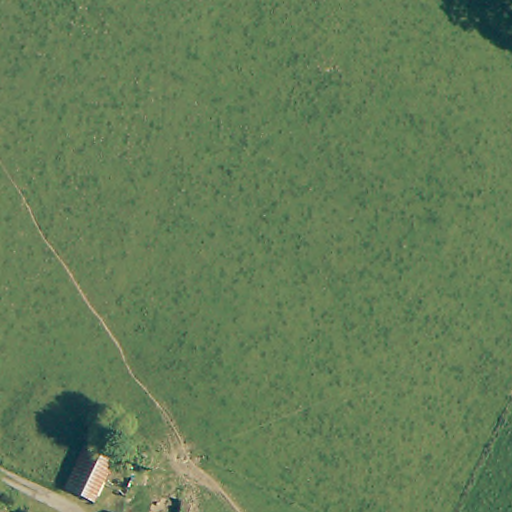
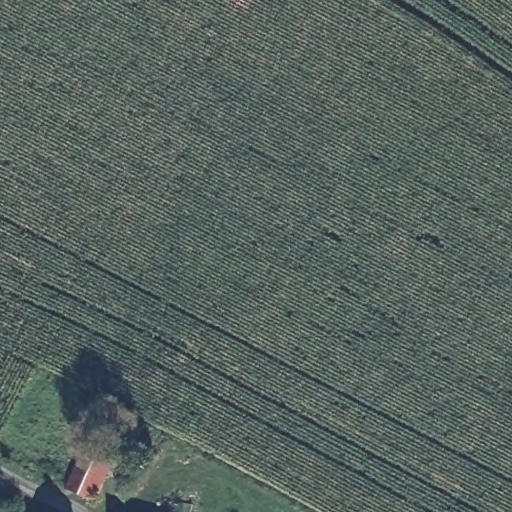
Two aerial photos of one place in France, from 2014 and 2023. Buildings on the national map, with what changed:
unchanged [(61,491),(82,447),(110,461),(90,503),(61,491)]

